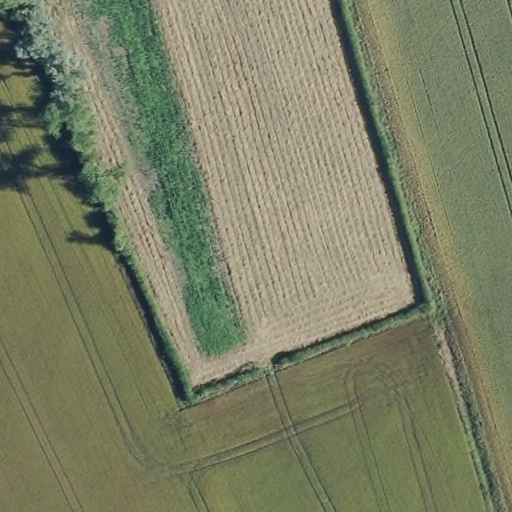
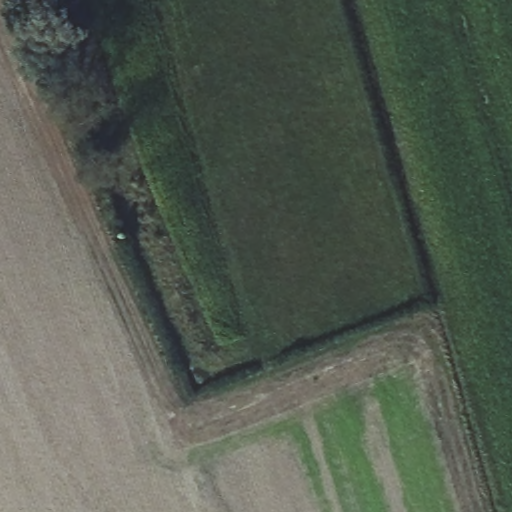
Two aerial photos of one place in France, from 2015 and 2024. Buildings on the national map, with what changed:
[]

